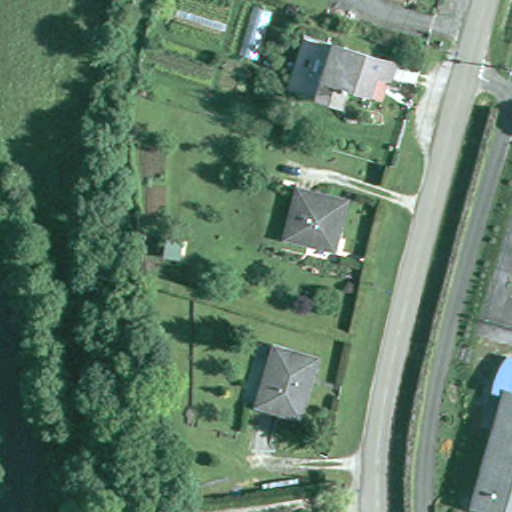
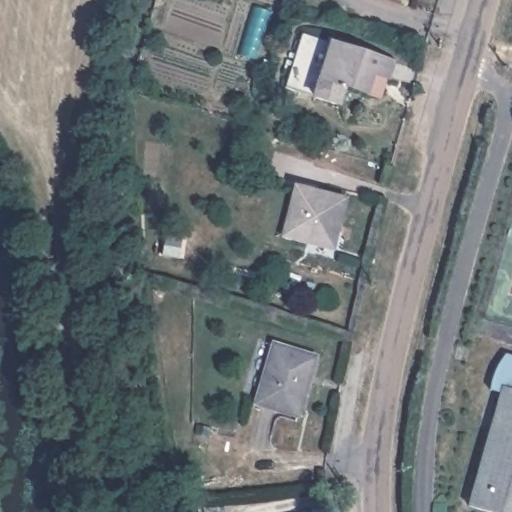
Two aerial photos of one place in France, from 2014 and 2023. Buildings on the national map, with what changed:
unchanged [(311,39),(412,67),(405,90),(385,84),(380,99),(357,92),(352,109),(297,92),(311,39)]
unchanged [(345,201),(334,245),(287,232),(299,188),(345,201)]
unchanged [(320,350),(306,412),(264,401),(279,339),(320,350)]
unchanged [(485,390),(486,386),(492,370),(493,367),(500,354),(512,357),(512,512),(493,512),(471,507),(497,393),(485,390)]

